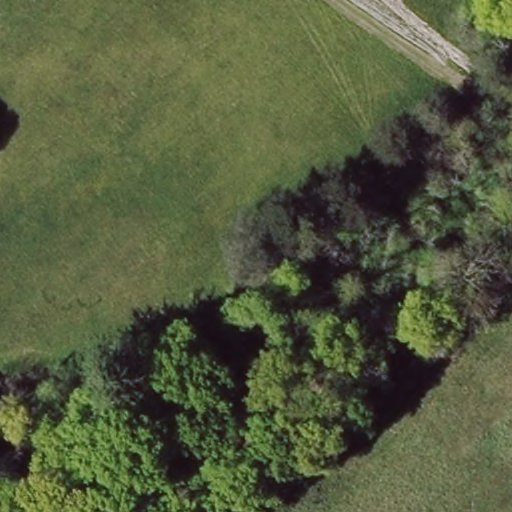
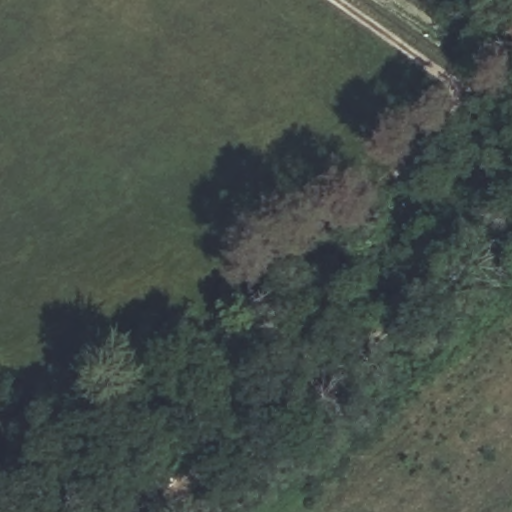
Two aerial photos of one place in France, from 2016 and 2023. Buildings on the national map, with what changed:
unchanged [(61,494),(75,512),(37,512),(61,494)]

